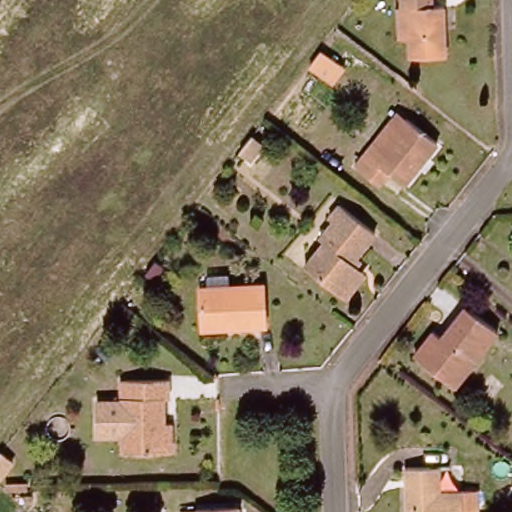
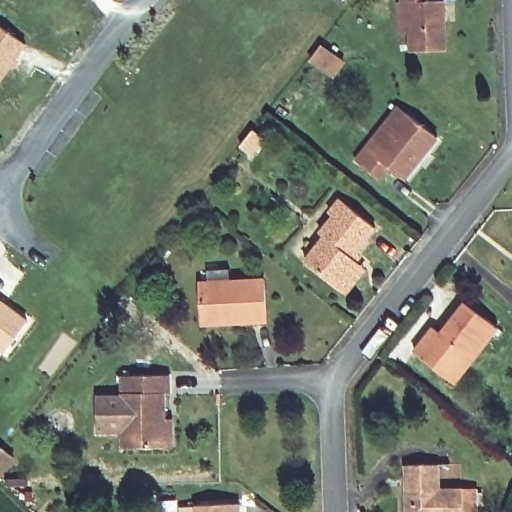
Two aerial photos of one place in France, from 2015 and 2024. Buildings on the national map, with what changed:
unchanged [(444,2),(445,53),(408,54),(406,5),(399,4),(399,0),(432,0),(432,1),(444,2)]
new [(20,43),(0,72),(0,28),(20,43)]
unchanged [(391,164),(381,176),(357,157),(368,144),(401,104),(410,111),(441,135),(407,177),(391,164)]
unchanged [(267,143),(257,157),(246,149),(257,135),(267,143)]
unchanged [(347,296),(339,291),(304,264),(322,240),(318,238),(334,216),(329,213),(338,202),(377,232),(355,262),(360,266),(367,271),(347,296)]
unchanged [(266,321),(223,323),(219,317),(200,317),(200,281),(267,279),(266,321)]
new [(24,321),(1,351),(0,350),(0,303),(24,321)]
unchanged [(443,370),(418,351),(437,326),(449,333),(470,308),(498,331),(462,376),(458,382),(443,370)]
unchanged [(176,445),(164,446),(127,445),(126,429),(103,429),(102,393),(125,391),(125,373),(175,372),(176,390),(164,391),(164,417),(175,417),(176,445)]
unchanged [(5,449),(16,459),(0,481),(0,456),(5,449)]
unchanged [(463,512),(408,512),(403,465),(427,464),(440,463),(442,489),(462,489),(463,512)]
unchanged [(241,512),(196,512),(195,504),(240,503),(241,512)]

